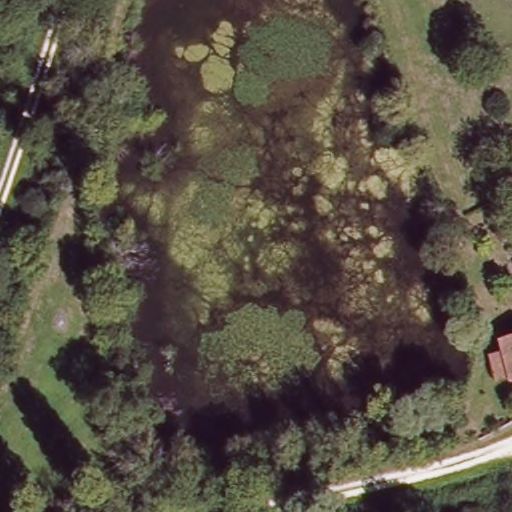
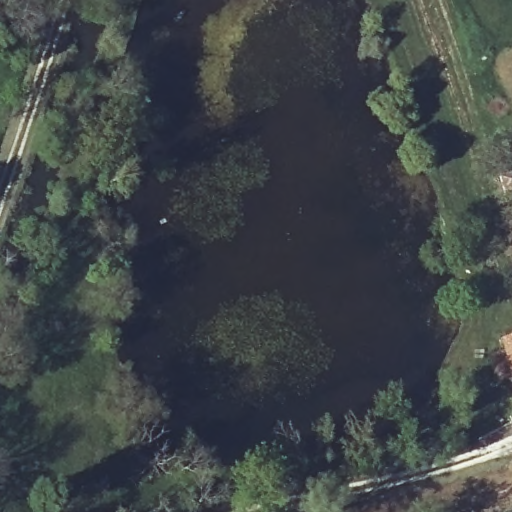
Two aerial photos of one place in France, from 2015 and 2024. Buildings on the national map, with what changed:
unchanged [(504,194),(500,180),(512,176),(512,191),(504,194)]
unchanged [(486,360),(500,355),(497,344),(512,339),(512,383),(509,384),(507,379),(493,383),(486,360)]

